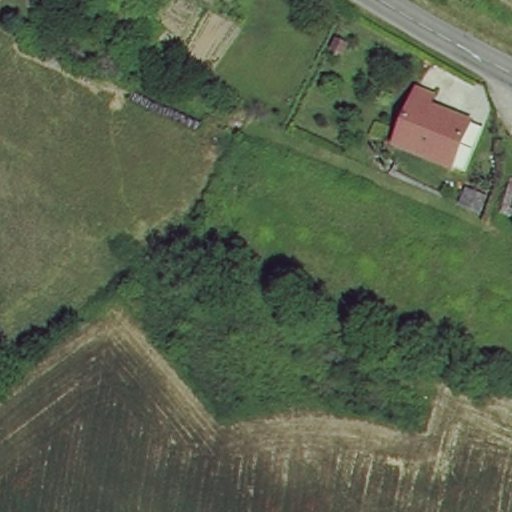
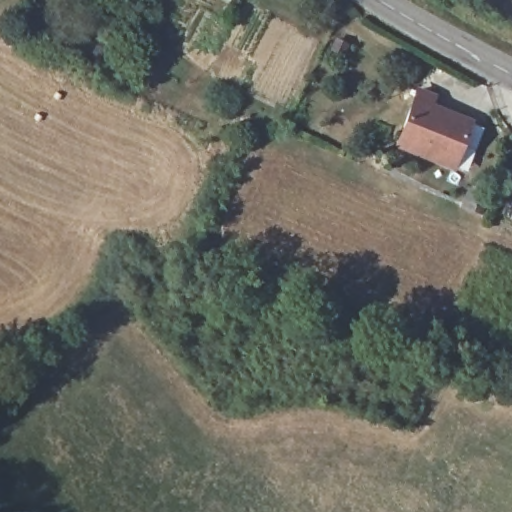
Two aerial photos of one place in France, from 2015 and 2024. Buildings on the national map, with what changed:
unchanged [(435,98),(431,108),(472,123),(456,171),(396,149),(416,91),(435,98)]

